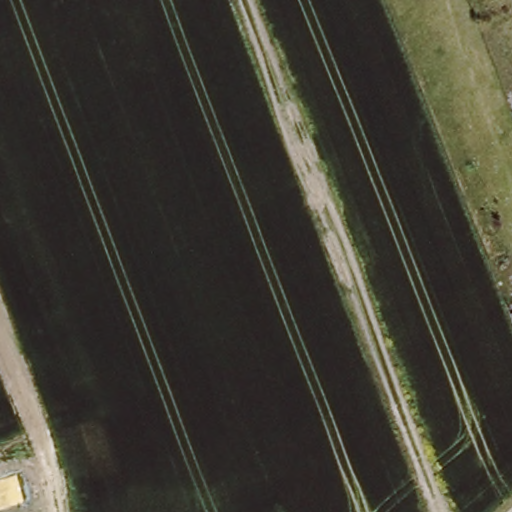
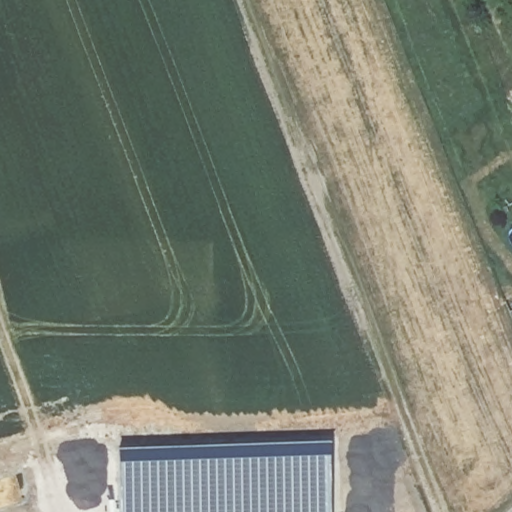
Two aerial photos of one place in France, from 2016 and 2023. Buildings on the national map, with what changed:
new [(118,457),(328,449),(330,512),(118,512),(118,457)]

